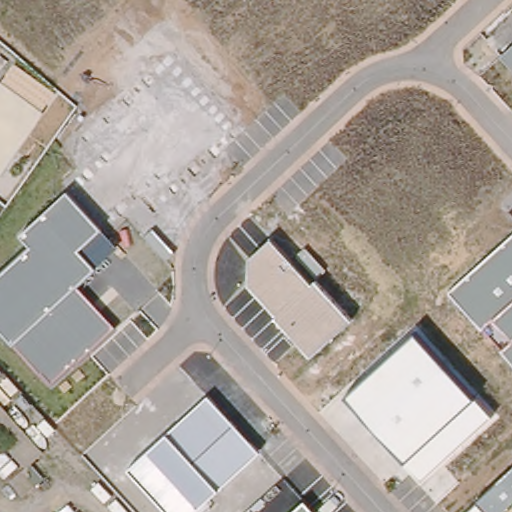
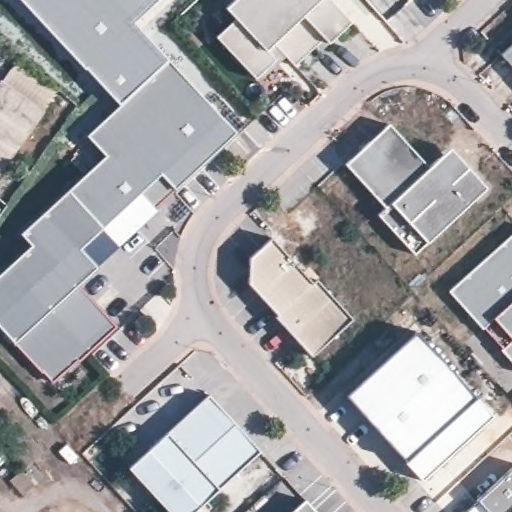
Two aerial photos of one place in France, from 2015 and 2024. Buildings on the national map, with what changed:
new [(166,59),(119,104),(20,0),(156,0),(132,22),(166,59)]
unchanged [(224,7),(232,0),(328,0),(350,24),(327,44),(323,39),(293,66),(272,43),(265,49),(274,60),(253,78),(215,36),(234,18),(224,7)]
unchanged [(501,55),(512,45),(512,68),(501,55)]
new [(106,156),(87,135),(166,59),(235,132),(153,207),(156,211),(122,247),(77,199),(69,190),(106,156)]
new [(54,91),(42,108),(45,110),(0,176),(0,160),(35,109),(12,94),(0,85),(0,84),(16,65),(54,91)]
unchanged [(0,160),(0,86),(35,109),(0,160)]
new [(429,167),(451,149),(486,190),(427,242),(414,255),(379,215),(386,208),(345,165),(390,125),(429,167)]
unchanged [(78,286),(115,326),(52,384),(0,329),(0,273),(29,247),(18,234),(69,190),(122,247),(78,286)]
unchanged [(450,292),(512,235),(512,364),(450,292)]
unchanged [(290,258),(305,246),(328,271),(318,279),(353,318),(310,358),(272,318),(277,313),(247,281),(250,257),(271,236),(290,258)]
unchanged [(492,415),(421,482),(345,395),(416,333),(492,415)]
unchanged [(261,451),(196,512),(167,512),(128,469),(208,394),(261,451)]
unchanged [(512,467),(512,507),(506,512),(463,512),(512,467)]
unchanged [(315,512),(292,512),(305,500),(315,512)]

